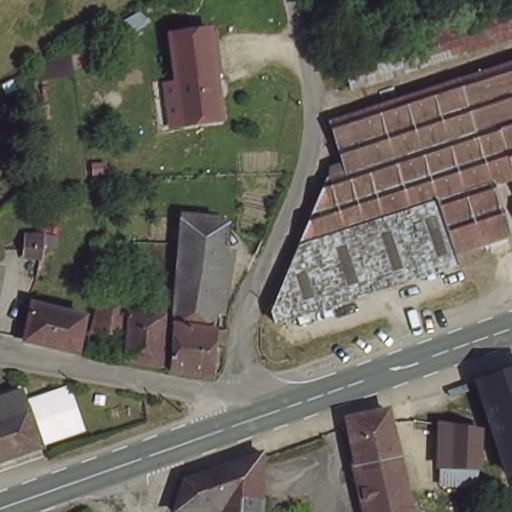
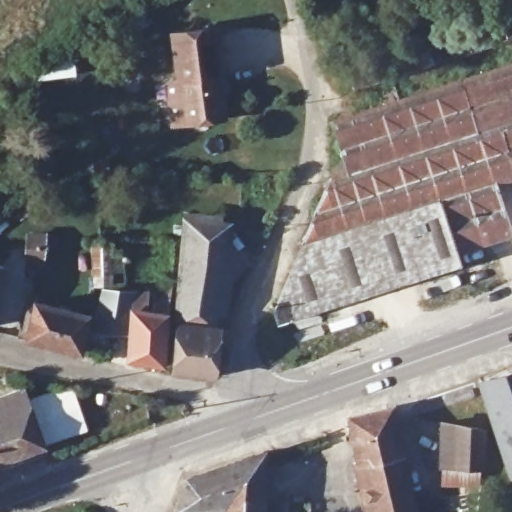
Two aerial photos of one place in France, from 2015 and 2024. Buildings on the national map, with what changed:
unchanged [(355,84),(346,59),(512,3),(512,30),(355,84)]
unchanged [(223,117),(184,122),(172,33),(211,27),(223,117)]
unchanged [(276,299),(312,226),(326,176),(348,168),(335,121),(512,59),(512,180),(505,161),(473,171),(489,227),(438,245),(442,261),(282,314),(276,299)]
unchanged [(220,337),(208,370),(165,362),(191,238),(195,217),(240,227),(235,248),(218,326),(220,337)]
unchanged [(50,262),(22,257),(28,230),(53,233),(50,262)]
unchanged [(95,245),(102,245),(116,244),(117,271),(96,272),(95,245)]
unchanged [(138,352),(132,334),(102,327),(109,296),(132,300),(133,314),(152,322),(153,351),(138,352)]
unchanged [(88,312),(80,338),(33,327),(41,298),(88,312)]
unchanged [(512,366),(512,453),(481,377),(512,366)]
unchanged [(0,454),(0,395),(20,387),(38,439),(0,454)]
unchanged [(363,455),(355,412),(391,404),(401,447),(363,455)]
unchanged [(473,434),(470,462),(442,458),(443,427),(473,434)]
unchanged [(416,512),(374,512),(363,455),(401,447),(415,508),(416,512)]
unchanged [(221,512),(222,495),(190,503),(188,480),(222,468),(263,454),(258,512),(221,512)]

